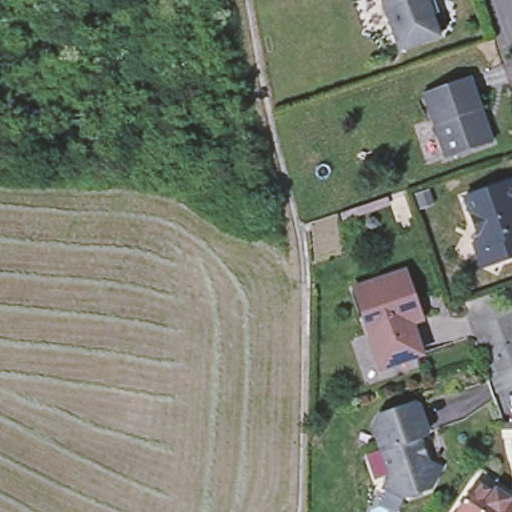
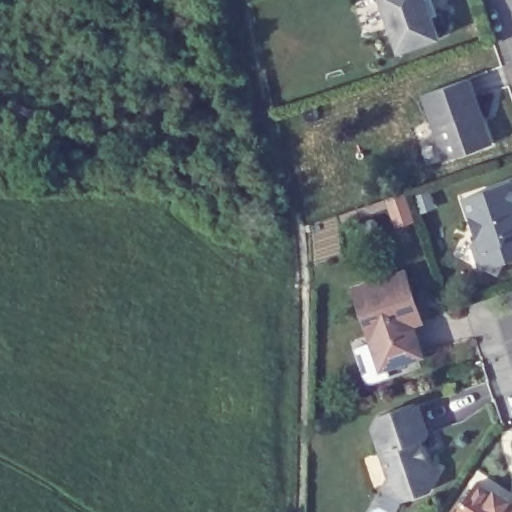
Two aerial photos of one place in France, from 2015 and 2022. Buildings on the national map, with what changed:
unchanged [(441,37),(400,52),(382,0),(427,0),(433,17),(441,37)]
unchanged [(446,159),(424,94),(470,78),(481,110),(485,122),(492,143),(446,159)]
unchanged [(474,239),(480,227),(476,225),(465,192),(510,177),(512,181),(512,253),(505,256),(474,239)]
unchanged [(403,272),(418,317),(409,321),(420,352),(382,365),(357,288),(403,272)]
unchanged [(417,405),(423,408),(432,433),(430,437),(424,441),(432,465),(445,471),(433,492),(408,501),(388,490),(394,478),(377,431),(384,417),(417,405)]
unchanged [(491,487),(494,483),(507,493),(505,497),(512,502),(512,512),(450,512),(475,476),(491,487)]

